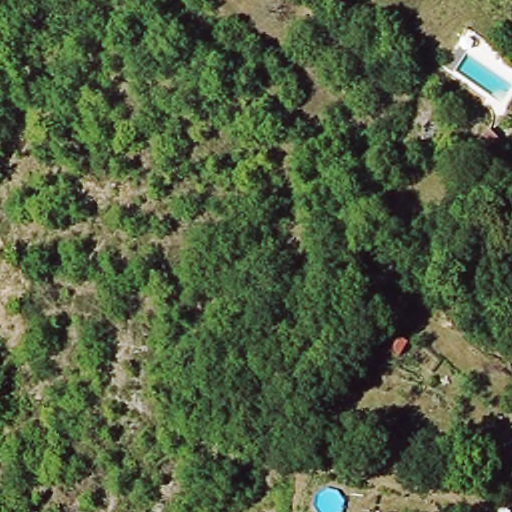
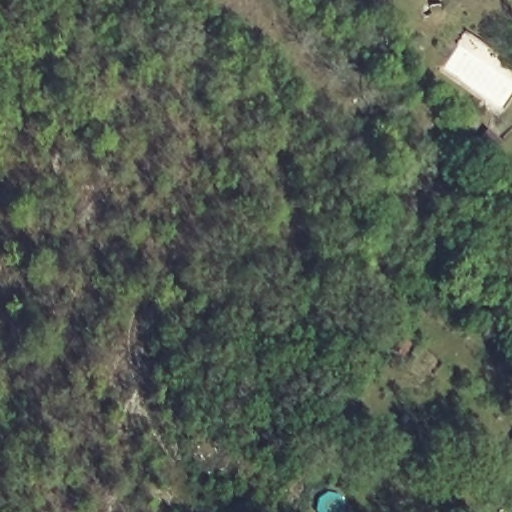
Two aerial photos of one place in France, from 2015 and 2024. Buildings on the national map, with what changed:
unchanged [(493,156),(476,140),(487,128),(506,143),(493,156)]

